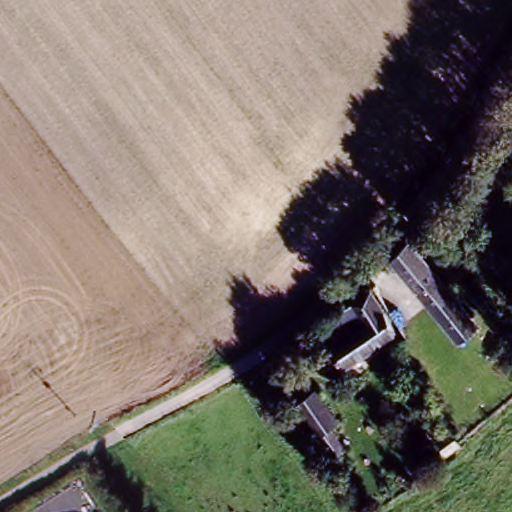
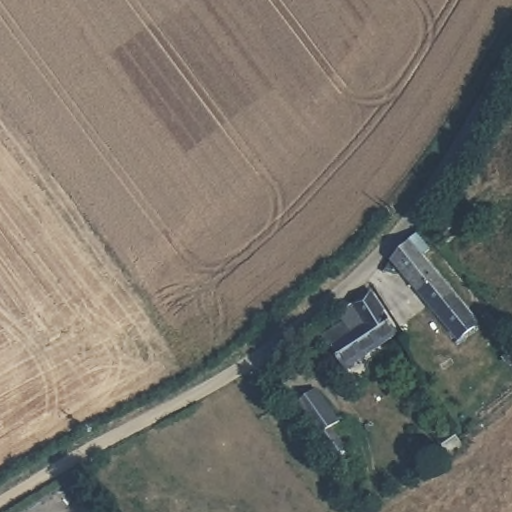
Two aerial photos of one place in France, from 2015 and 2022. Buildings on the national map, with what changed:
unchanged [(451,330),(419,297),(388,265),(405,249),(416,237),(427,250),(415,260),(433,280),(466,316),(451,330)]
unchanged [(397,327),(348,372),(334,356),(344,347),(334,336),(357,315),(373,300),(397,327)]
unchanged [(491,323),(480,333),(468,320),(479,311),(491,323)]
unchanged [(282,410),(298,396),(322,423),(314,430),(332,451),(323,458),(282,410)]

